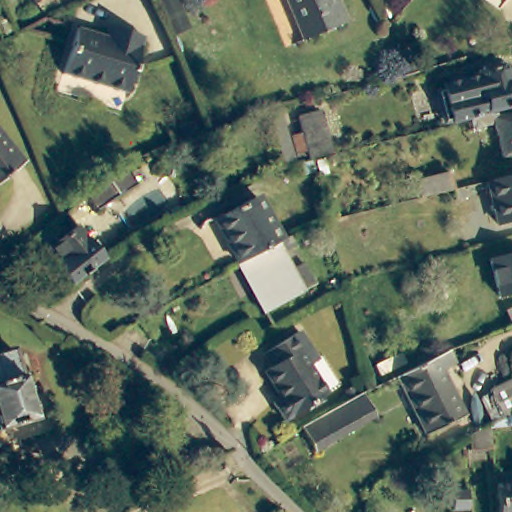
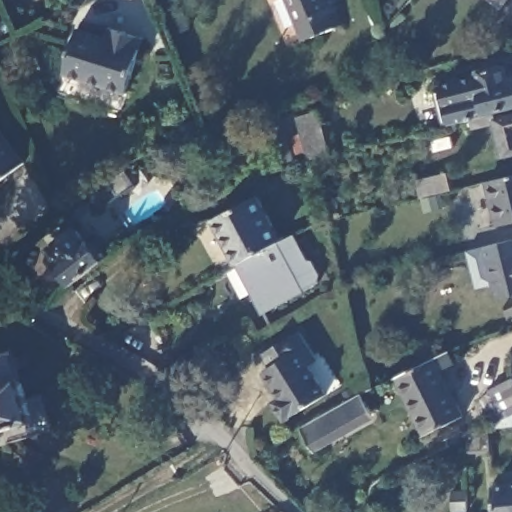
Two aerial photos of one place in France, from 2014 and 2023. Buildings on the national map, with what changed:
unchanged [(344,19),(298,38),(282,0),(336,0),(344,19)]
unchanged [(121,87),(60,69),(73,23),(101,31),(103,27),(105,21),(118,25),(138,31),(121,87)]
unchanged [(446,84),(481,76),(480,72),(507,64),(512,85),(512,106),(491,111),(491,114),(475,118),(457,122),(446,84)]
unchanged [(311,132),(322,129),(317,112),(339,105),(350,146),(329,152),(327,147),(317,150),(311,132)]
unchanged [(289,113),(297,111),(311,154),(302,157),(289,113)]
unchanged [(491,114),(500,112),(500,115),(512,113),(512,153),(506,155),(498,121),(477,126),(475,118),(491,114)]
unchanged [(0,179),(0,131),(24,160),(0,179)]
unchanged [(136,181),(96,207),(86,194),(127,168),(136,181)]
unchanged [(416,180),(447,171),(452,188),(420,196),(416,180)]
unchanged [(496,223),(485,180),(512,173),(512,219),(496,223)]
unchanged [(455,199),(452,188),(461,186),(464,197),(455,199)]
unchanged [(213,220),(255,196),(280,240),(243,260),(236,264),(213,220)]
unchanged [(313,231),(317,238),(305,244),(301,237),(313,231)]
unchanged [(64,282),(64,283),(54,269),(55,268),(43,252),(70,232),(95,265),(68,286),(64,282)]
unchanged [(280,240),(289,235),(293,243),(281,250),(291,269),(303,262),(314,282),(262,311),(251,291),(257,288),(243,260),(280,240)]
unchanged [(497,295),(488,259),(512,253),(512,291),(497,295)]
unchanged [(509,312),(512,311),(512,320),(509,312)]
unchanged [(274,413),(263,395),(270,390),(254,364),(262,359),(253,345),(289,324),(307,353),(299,358),(318,387),(274,413)]
unchanged [(0,427),(0,352),(11,348),(31,418),(0,427)]
unchanged [(448,366),(435,373),(458,419),(420,438),(391,379),(442,354),(448,366)]
unchanged [(489,431),(489,428),(493,425),(480,402),(487,395),(512,383),(512,429),(489,431)]
unchanged [(371,412),(333,434),(335,438),(314,450),(299,426),(360,392),(371,412)]
unchanged [(496,512),(494,484),(512,483),(512,512),(496,512)]

